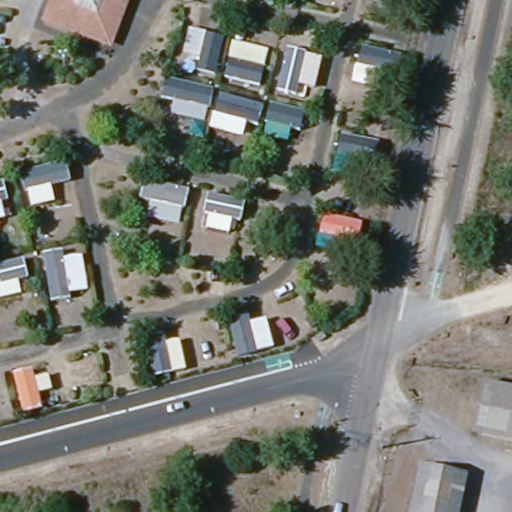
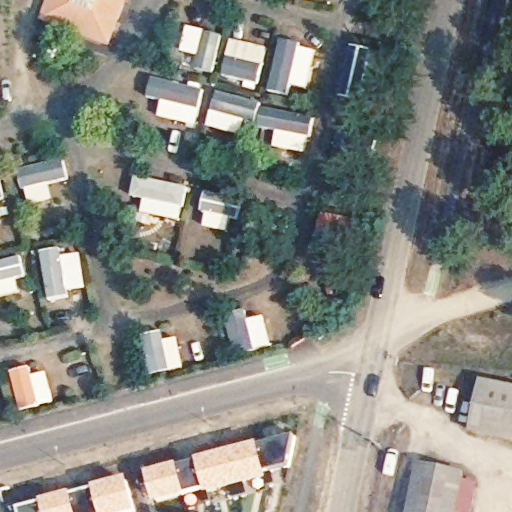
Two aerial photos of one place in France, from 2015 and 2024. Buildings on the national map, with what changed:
unchanged [(111,43),(51,19),(59,0),(129,0),(111,43)]
unchanged [(512,392),(512,444),(476,438),(485,387),(512,392)]
new [(292,434),(286,464),(262,471),(262,474),(206,489),(204,485),(181,491),(180,490),(154,497),(147,472),(292,434)]
unchanged [(412,512),(419,470),(463,477),(458,512),(412,512)]
new [(132,508),(119,512),(18,512),(17,507),(124,478),(132,508)]

